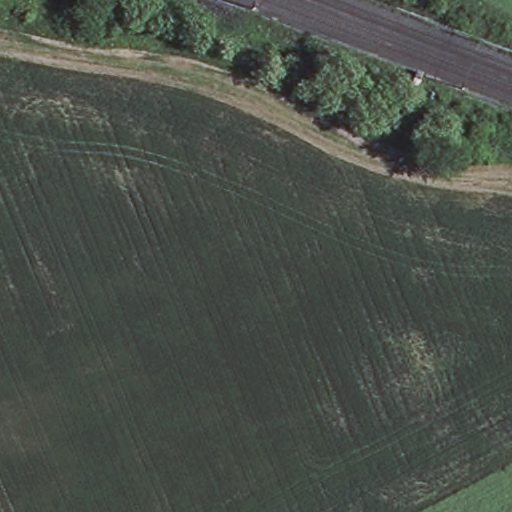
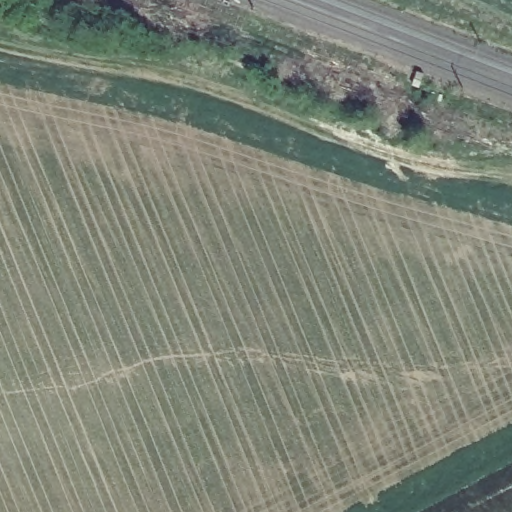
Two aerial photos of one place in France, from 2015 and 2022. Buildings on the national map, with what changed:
[]

